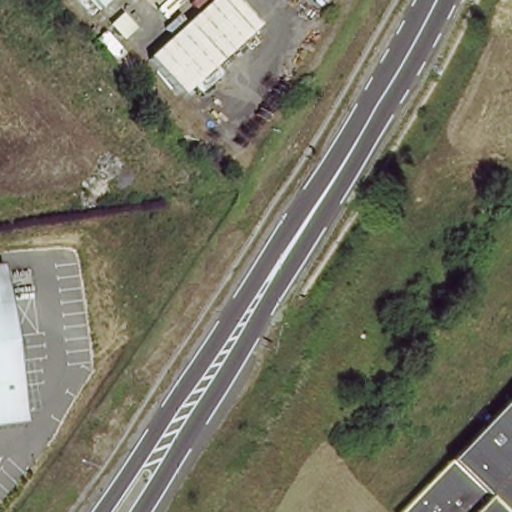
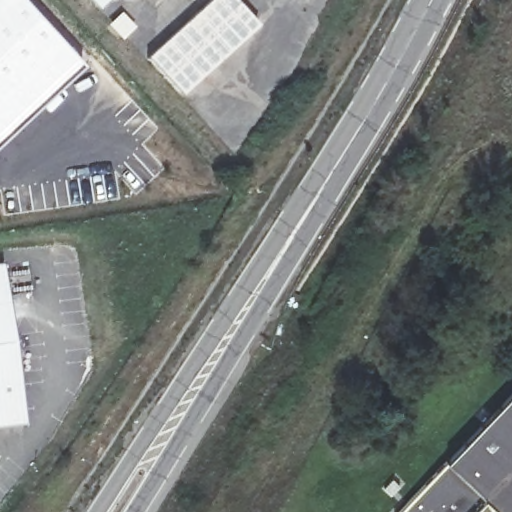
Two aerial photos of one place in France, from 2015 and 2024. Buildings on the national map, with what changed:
new [(82,64),(0,136),(0,0),(24,0),(82,64)]
unchanged [(96,0),(117,0),(105,11),(96,0)]
unchanged [(153,60),(219,0),(233,0),(259,29),(187,96),(153,60)]
unchanged [(8,263),(22,348),(28,402),(0,405),(0,264),(8,263)]
unchanged [(512,375),(512,512),(393,512),(391,511),(512,375)]

